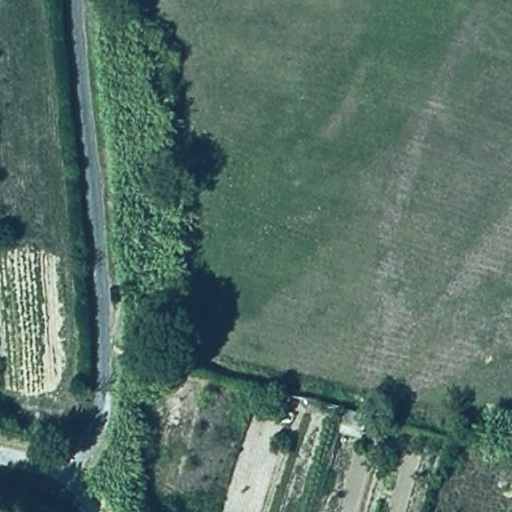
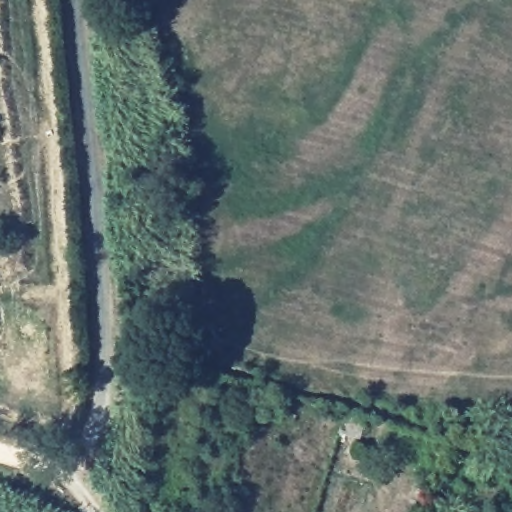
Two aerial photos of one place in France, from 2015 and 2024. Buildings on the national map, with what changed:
unchanged [(366,417),(361,441),(336,434),(342,410),(366,417)]

